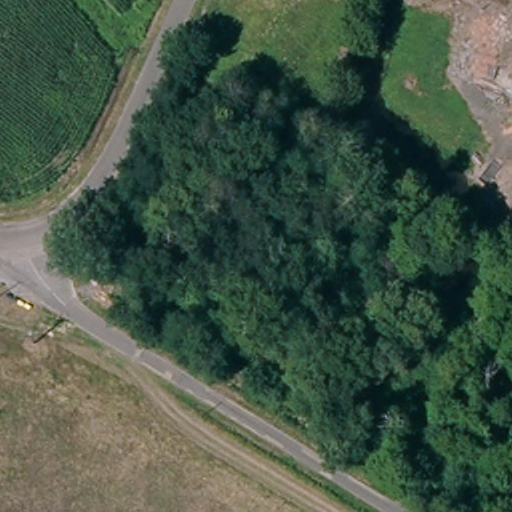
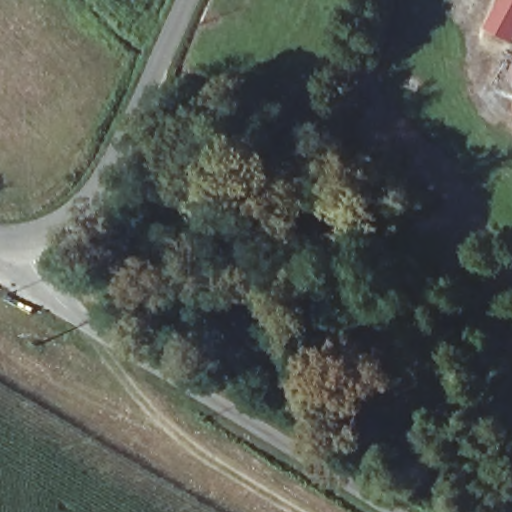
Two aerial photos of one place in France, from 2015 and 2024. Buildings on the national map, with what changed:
new [(482,28),(496,0),(512,0),(512,34),(508,42),(482,28)]

